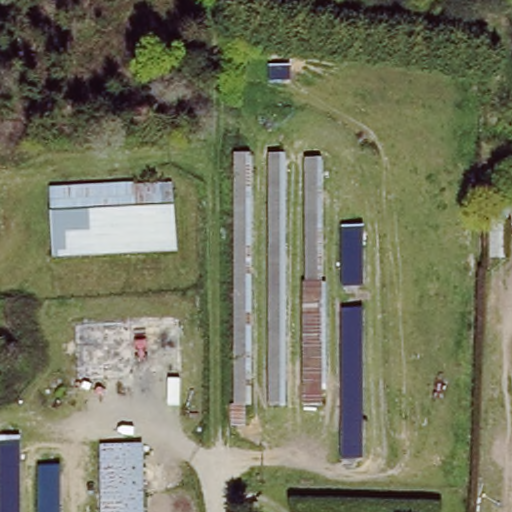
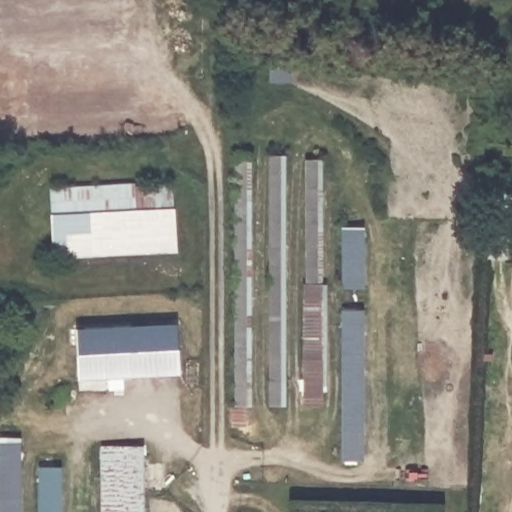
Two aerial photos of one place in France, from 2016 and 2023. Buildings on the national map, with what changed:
unchanged [(245,155),(246,408),(232,408),(232,155),(245,155)]
unchanged [(279,156),(280,407),(264,407),(265,155),(279,156)]
unchanged [(301,155),(319,155),(318,286),(318,407),(300,407),(301,287),(301,155)]
unchanged [(173,185),(175,252),(54,260),(52,192),(173,185)]
unchanged [(363,225),(363,289),(341,290),(341,225),(363,225)]
new [(177,322),(180,373),(77,378),(75,327),(177,322)]
unchanged [(342,325),(357,325),(356,441),(341,440),(342,325)]
demolished [(77,368),(77,337),(130,334),(130,365),(77,368)]
unchanged [(20,436),(20,512),(0,512),(0,436),(20,436)]
unchanged [(100,445),(143,447),(142,512),(99,512),(100,445)]
unchanged [(61,466),(60,512),(37,512),(37,466),(61,466)]

